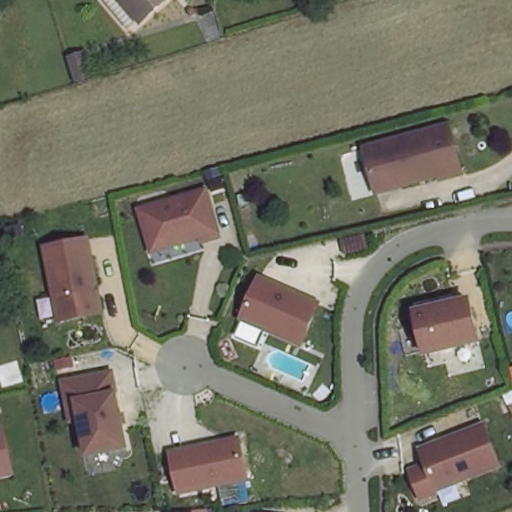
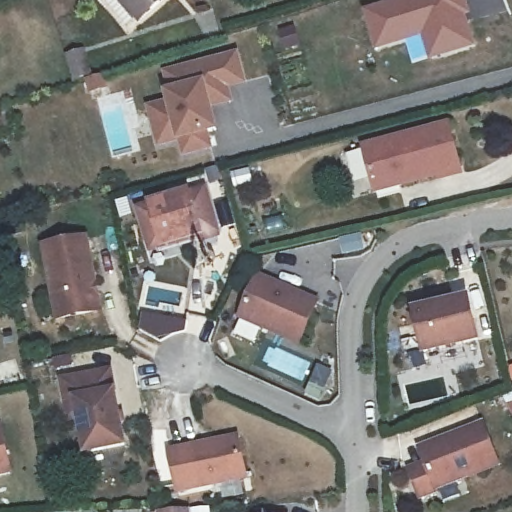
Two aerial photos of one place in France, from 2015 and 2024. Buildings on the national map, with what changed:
unchanged [(106,0),(163,0),(144,17),(141,15),(126,26),(106,0)]
new [(391,0),(467,0),(472,15),(469,17),(477,48),(428,62),(421,39),(373,51),(363,9),(391,0)]
unchanged [(94,72),(80,77),(73,52),(86,48),(94,72)]
new [(178,143),(155,148),(145,106),(164,100),(163,92),(161,70),(238,51),(246,85),(228,89),(231,103),(213,108),(218,132),(208,135),(213,149),(181,158),(178,143)]
unchanged [(376,174),(368,141),(451,119),(464,167),(444,172),(443,168),(404,178),(379,185),(376,174)]
unchanged [(148,248),(136,200),(206,179),(218,229),(148,248)]
unchanged [(106,310),(56,320),(40,247),(89,236),(106,310)]
unchanged [(320,303),(303,346),(241,320),(259,274),(320,303)]
unchanged [(484,341),(427,354),(416,308),(473,294),(484,341)]
unchanged [(126,441),(83,447),(75,415),(65,417),(59,373),(113,365),(126,441)]
unchanged [(501,461),(434,487),(417,440),(482,415),(501,461)]
unchanged [(0,476),(0,425),(4,424),(15,473),(0,476)]
unchanged [(249,478),(178,493),(171,449),(241,435),(249,478)]
unchanged [(272,512),(290,511),(290,512),(272,512)]

